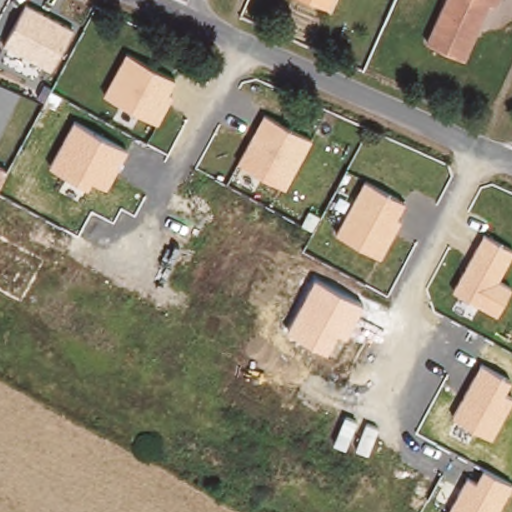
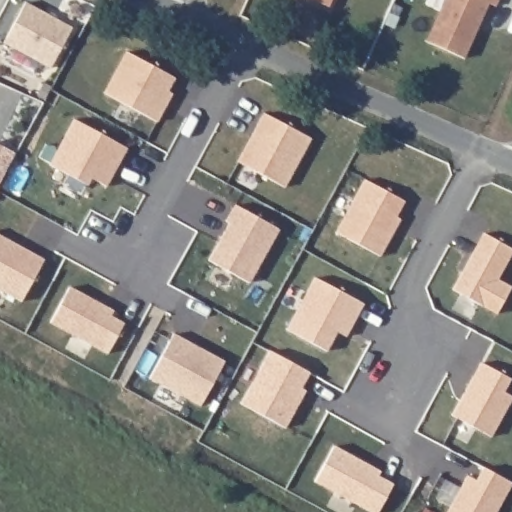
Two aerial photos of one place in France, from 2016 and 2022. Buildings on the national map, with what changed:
unchanged [(329,2),(325,0),(330,0),(329,2)]
unchanged [(426,36),(443,0),(488,0),(464,53),(426,36)]
unchanged [(496,1),(494,0),(496,0),(496,1)]
unchanged [(27,2),(73,27),(49,70),(4,46),(27,2)]
unchanged [(104,94),(126,52),(174,79),(167,94),(172,97),(158,123),(104,94)]
unchanged [(237,164),(264,116),(310,139),(285,189),(237,164)]
unchanged [(92,178),(87,187),(48,166),(74,121),(127,149),(107,187),(92,178)]
unchanged [(7,169),(0,182),(0,165),(7,169)]
unchanged [(336,232),(365,178),(405,201),(396,218),(401,220),(380,257),(336,232)]
new [(209,260),(229,224),(225,221),(235,205),(280,229),(249,282),(209,260)]
unchanged [(512,256),(498,282),(511,289),(495,317),(453,294),(484,235),(512,251),(512,256)]
new [(44,260),(21,302),(0,290),(0,236),(44,260)]
unchanged [(347,337),(336,331),(325,350),(285,331),(313,277),(362,306),(347,337)]
new [(70,287),(114,311),(111,316),(124,324),(108,354),(50,322),(70,287)]
new [(225,361),(201,406),(149,379),(175,332),(225,361)]
new [(270,352),(309,373),(301,389),(305,391),(285,428),(241,405),(270,352)]
unchanged [(504,394),(512,397),(512,399),(492,439),(451,416),(480,364),(511,381),(504,394)]
new [(379,476),(394,484),(379,512),(369,512),(315,483),(334,445),(382,471),(379,476)]
unchanged [(498,512),(447,512),(466,477),(475,483),(484,470),(511,484),(498,512)]

